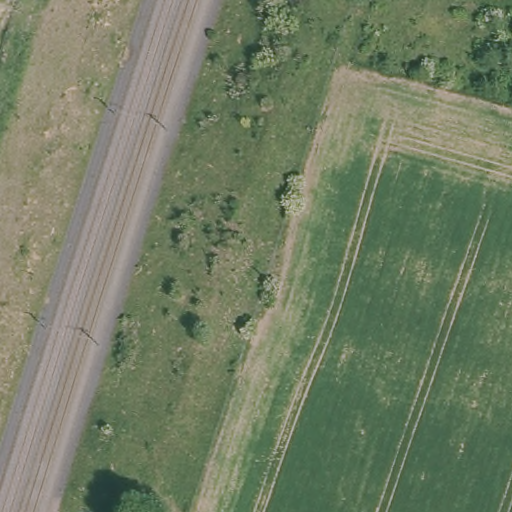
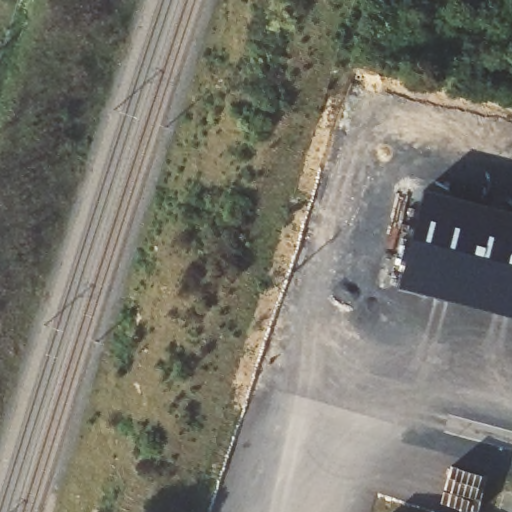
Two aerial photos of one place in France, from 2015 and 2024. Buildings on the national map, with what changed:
new [(423,189),(512,213),(512,319),(397,290),(423,189)]

